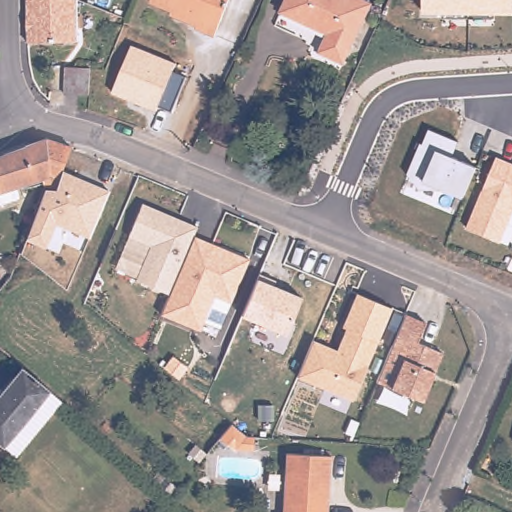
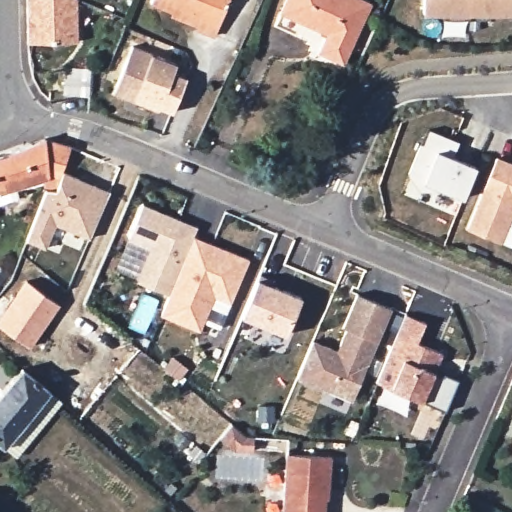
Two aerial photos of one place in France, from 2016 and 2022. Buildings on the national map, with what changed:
unchanged [(77,0),(78,43),(26,44),(25,0),(77,0)]
unchanged [(149,0),(150,0),(229,0),(214,36),(198,29),(196,26),(170,16),(172,10),(149,0)]
unchanged [(370,0),(342,59),(317,46),(326,29),(279,6),(283,0),(370,0)]
unchanged [(422,0),(512,0),(512,13),(422,13),(422,0)]
unchanged [(158,105),(156,110),(110,92),(133,45),(177,62),(173,72),(185,77),(172,109),(158,105)]
unchanged [(65,67),(91,67),(89,95),(63,94),(65,67)]
unchanged [(419,140),(423,141),(428,127),(456,137),(450,154),(473,163),(462,194),(440,186),(420,188),(406,174),(419,140)]
unchanged [(70,140),(56,183),(44,182),(42,174),(17,182),(19,192),(0,199),(0,150),(45,132),(70,140)]
unchanged [(512,162),(512,213),(501,240),(466,227),(496,156),(512,162)]
unchanged [(109,188),(87,235),(54,222),(46,244),(23,237),(44,189),(56,188),(56,183),(60,169),(109,188)]
unchanged [(169,291),(133,277),(148,245),(127,236),(141,203),(197,227),(195,235),(250,258),(230,302),(213,295),(199,329),(161,313),(169,291)]
unchanged [(257,277),(302,294),(284,332),(241,314),(257,277)]
new [(58,307),(26,348),(0,327),(0,316),(27,282),(58,307)]
unchanged [(393,305),(352,398),(296,376),(312,338),(337,348),(345,328),(340,326),(356,291),(393,305)]
unchanged [(429,322),(419,342),(445,355),(425,403),(376,381),(406,311),(429,322)]
unchanged [(0,442),(0,393),(23,364),(51,391),(6,445),(5,446),(0,442)]
unchanged [(51,391),(62,401),(17,455),(6,445),(51,391)]
unchanged [(232,423),(247,436),(253,436),(252,450),(236,449),(221,436),(232,423)]
unchanged [(276,510),(282,510),(286,447),(330,450),(327,512),(276,512),(276,510)]

